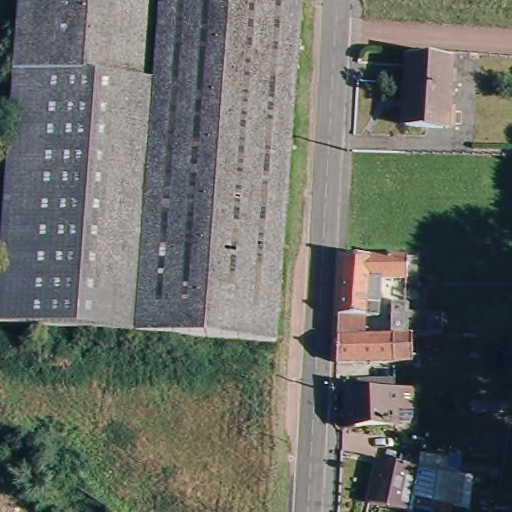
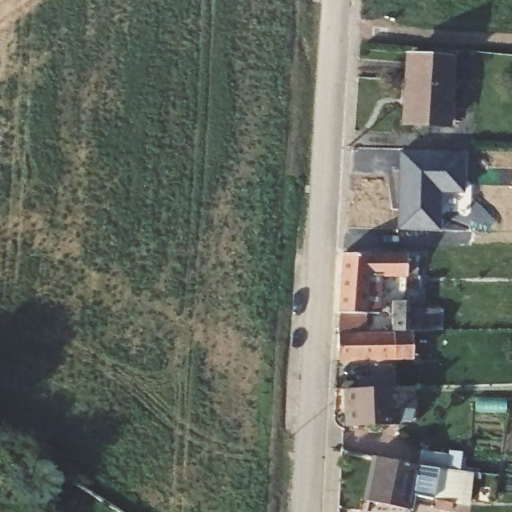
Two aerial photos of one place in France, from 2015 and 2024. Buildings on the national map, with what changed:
demolished [(15,0),(161,0),(155,81),(9,68),(15,0)]
demolished [(155,81),(161,0),(304,0),(280,341),(168,331),(133,329),(155,81)]
unchanged [(413,57),(451,60),(448,126),(408,122),(413,57)]
demolished [(0,317),(0,172),(9,68),(155,81),(133,329),(0,317)]
new [(399,150),(465,152),(464,193),(441,192),(440,230),(397,229),(399,150)]
unchanged [(348,248),(411,250),(409,272),(371,271),(370,308),(343,308),(348,248)]
unchanged [(392,322),(392,297),(409,296),(408,322),(401,322),(399,350),(339,351),(341,323),(392,322)]
unchanged [(398,393),(397,427),(353,429),(352,395),(398,393)]
unchanged [(377,453),(413,460),(417,441),(443,446),(439,465),(457,467),(451,498),(430,495),(407,491),(404,510),(366,502),(377,453)]

